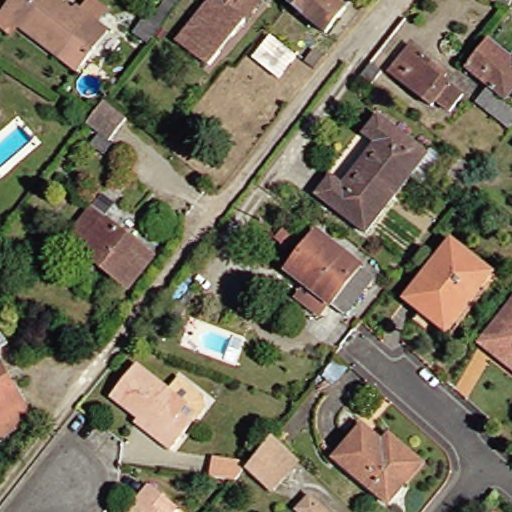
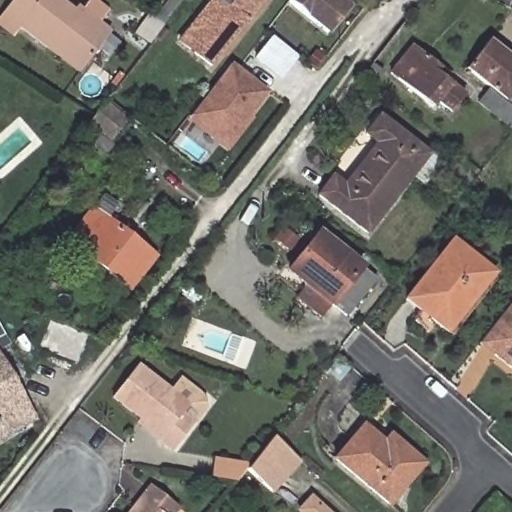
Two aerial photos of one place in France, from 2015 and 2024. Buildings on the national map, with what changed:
unchanged [(6,12),(16,0),(64,0),(77,11),(80,6),(112,32),(85,67),(81,72),(50,47),(6,12)]
unchanged [(180,39),(210,0),(261,0),(211,64),(180,39)]
unchanged [(328,33),(287,2),(288,0),(339,0),(348,8),(328,33)]
unchanged [(298,55),(280,77),(254,57),(272,34),(298,55)]
unchanged [(478,102),(490,86),(467,67),(490,38),(512,54),(512,96),(511,97),(512,97),(512,128),(478,102)]
unchanged [(446,67),(441,72),(469,94),(455,112),(442,102),(439,106),(397,72),(417,46),(446,67)]
unchanged [(377,61),(388,70),(378,84),(367,75),(377,61)]
new [(270,91),(228,154),(186,121),(231,62),(270,91)]
unchanged [(100,150),(78,132),(101,101),(124,119),(100,150)]
unchanged [(381,140),(369,130),(383,112),(432,149),(371,228),(323,192),(337,173),(348,182),(381,140)]
unchanged [(464,190),(446,177),(462,157),(480,171),(472,181),(464,190)]
unchanged [(155,255),(130,289),(67,237),(103,191),(118,202),(107,217),(155,255)]
unchanged [(318,232),(375,277),(347,313),(290,268),(318,232)]
unchanged [(494,272),(447,330),(405,297),(451,239),(494,272)]
unchanged [(494,355),(481,344),(479,342),(512,301),(512,369),(510,367),(494,355)]
unchanged [(0,348),(0,325),(10,342),(0,348)]
unchanged [(1,437),(0,435),(0,358),(33,418),(1,437)]
unchanged [(117,398),(142,367),(174,394),(183,383),(191,384),(210,398),(208,410),(173,452),(162,442),(140,425),(143,420),(117,398)]
unchanged [(401,487),(388,502),(337,457),(364,423),(384,441),(391,433),(416,455),(422,460),(401,487)]
unchanged [(274,438),(300,462),(273,494),(248,472),(237,486),(212,482),(215,461),(252,467),(274,438)]
unchanged [(179,509),(177,512),(132,512),(141,500),(151,487),(179,509)]
unchanged [(333,512),(305,512),(301,508),(312,495),(333,512)]

